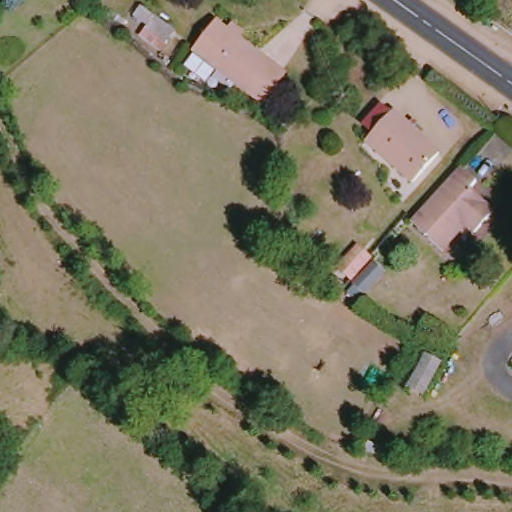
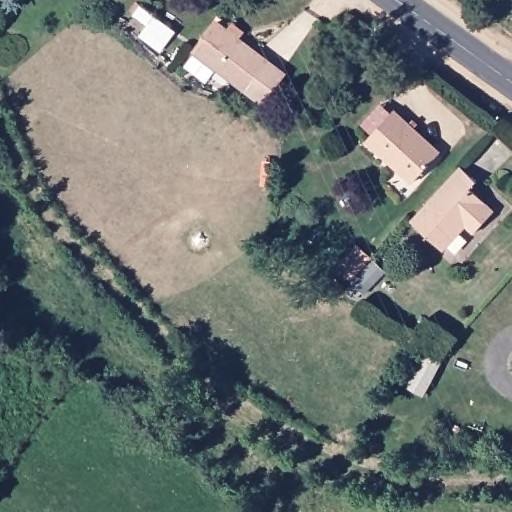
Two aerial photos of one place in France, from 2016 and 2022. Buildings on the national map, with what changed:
unchanged [(148,24),(157,12),(176,27),(167,39),(148,24)]
unchanged [(194,60),(203,49),(201,48),(223,19),(291,73),(268,101),(224,66),(214,77),(194,60)]
unchanged [(368,139),(396,110),(441,150),(415,180),(368,139)]
unchanged [(479,180),(472,189),(495,212),(476,234),(466,225),(445,250),(412,221),(462,165),(479,180)]
unchanged [(354,282),(339,269),(359,246),(374,259),(354,282)]
unchanged [(424,397),(409,390),(426,357),(441,364),(424,397)]

